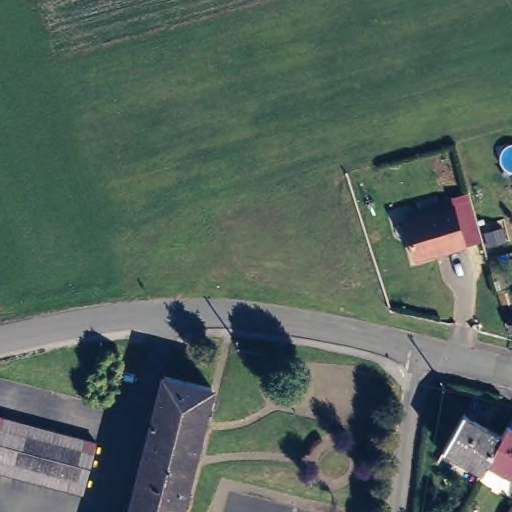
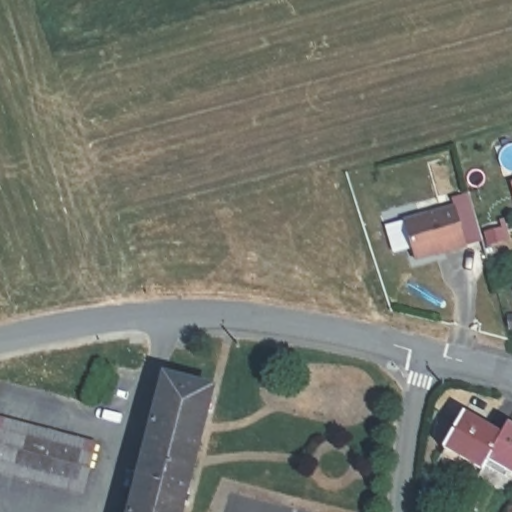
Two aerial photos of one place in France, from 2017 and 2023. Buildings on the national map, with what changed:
unchanged [(454,207),(465,246),(416,260),(404,221),(454,207)]
unchanged [(207,393),(177,512),(126,512),(159,382),(207,393)]
unchanged [(463,414),(502,436),(488,460),(482,470),(444,448),(463,414)]
unchanged [(91,448),(78,499),(0,478),(0,423),(91,448)]
unchanged [(507,426),(512,428),(512,473),(488,460),(502,436),(507,426)]

